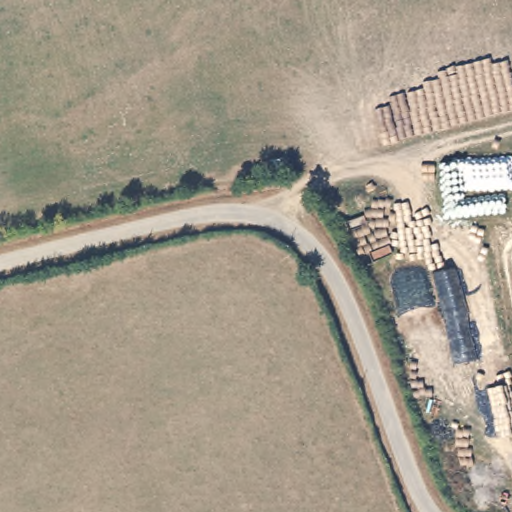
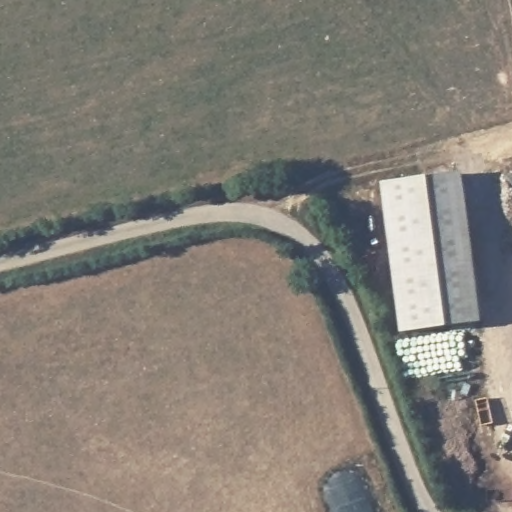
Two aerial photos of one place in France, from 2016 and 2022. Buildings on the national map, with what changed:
new [(460,172),(482,322),(401,332),(381,183),(460,172)]

